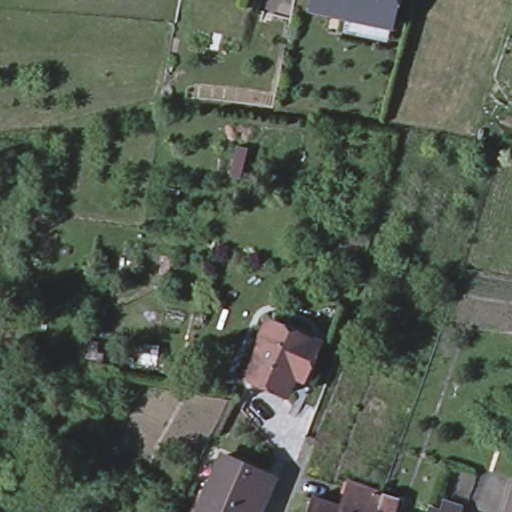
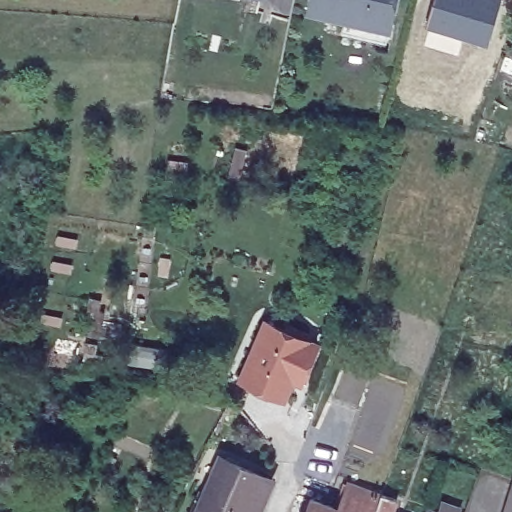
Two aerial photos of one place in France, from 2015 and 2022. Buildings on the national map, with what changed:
unchanged [(336,18),(303,11),(305,0),(387,0),(381,28),(378,43),(333,33),(336,18)]
new [(428,31),(435,0),(500,0),(488,49),(428,31)]
unchanged [(301,376),(292,373),(284,392),(243,376),(266,320),(311,338),(316,341),(301,376)]
unchanged [(220,455),(271,477),(255,512),(250,512),(248,511),(248,512),(195,512),(220,455)]
unchanged [(309,491),(339,501),(348,476),(382,488),(373,512),(302,512),(309,491)]
unchanged [(512,488),(512,512),(505,512),(512,488)]
unchanged [(429,503),(439,506),(442,496),(444,496),(460,502),(457,512),(425,512),(429,503)]

